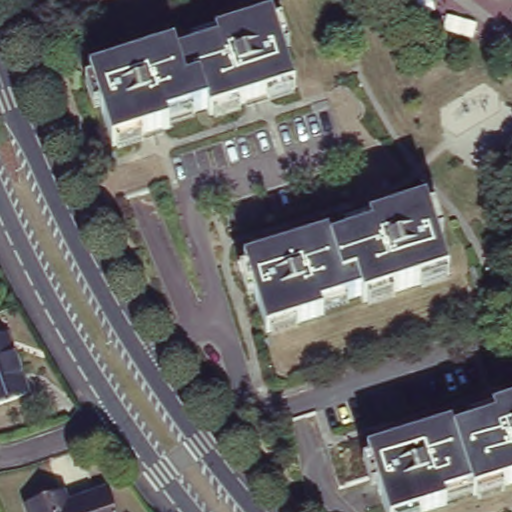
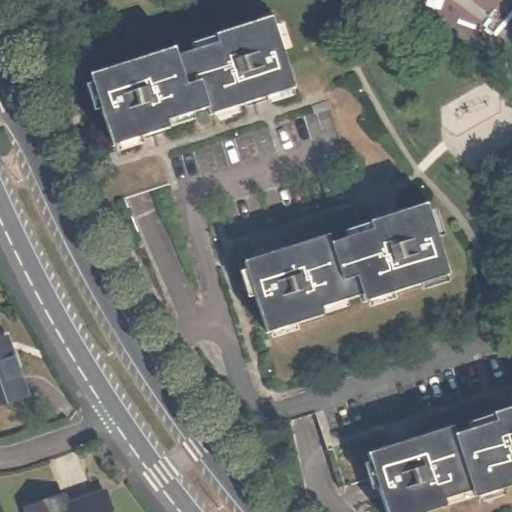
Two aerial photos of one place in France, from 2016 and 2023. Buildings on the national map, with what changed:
unchanged [(90,74),(175,47),(178,54),(219,42),(216,33),(272,16),(294,86),(210,114),(208,107),(169,120),(170,127),(113,145),(90,74)]
unchanged [(244,260),(329,233),(330,241),(373,228),(369,220),(426,203),(449,274),(364,301),(363,294),(322,307),(324,314),(267,332),(244,260)]
unchanged [(32,390),(0,401),(0,336),(11,332),(32,390)]
unchanged [(452,425),(454,432),(496,419),(494,411),(512,405),(512,484),(474,495),(472,489),(446,497),(448,504),(424,512),(388,512),(368,451),(452,425)]
unchanged [(63,493),(67,505),(108,492),(114,512),(28,512),(25,506),(63,493)]

